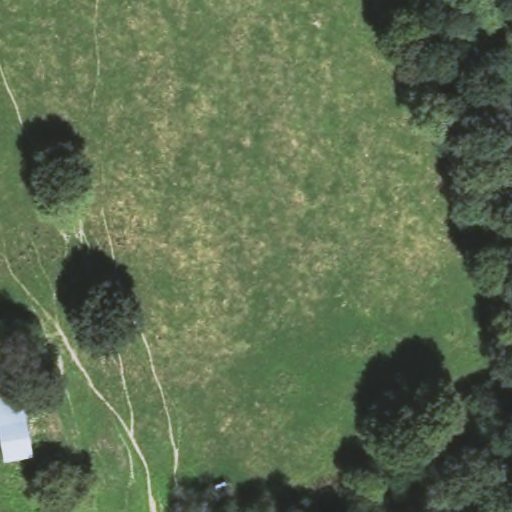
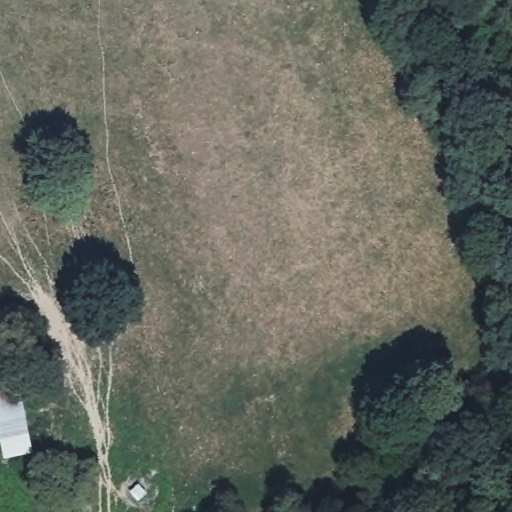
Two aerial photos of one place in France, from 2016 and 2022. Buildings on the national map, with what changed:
unchanged [(0,427),(0,384),(19,379),(36,454),(6,463),(0,427)]

